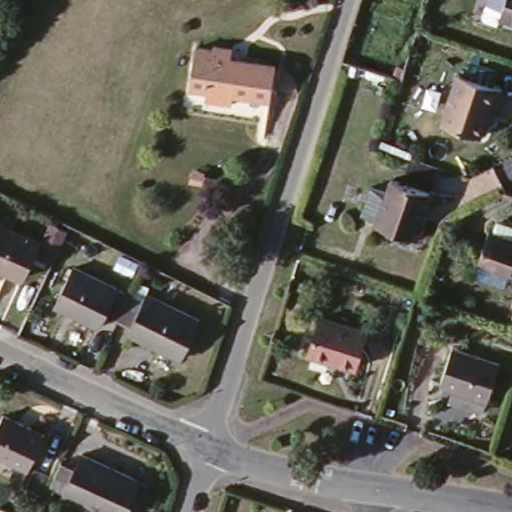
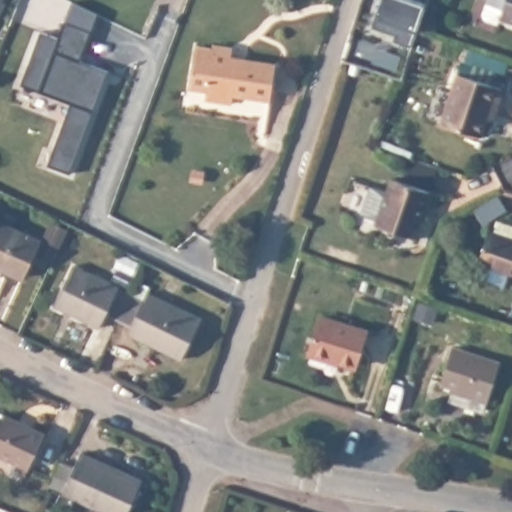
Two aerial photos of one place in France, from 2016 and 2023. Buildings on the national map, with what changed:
unchanged [(503,14),(480,4),(481,0),(512,0),(512,23),(500,19),(503,14)]
new [(90,31),(80,62),(107,72),(69,175),(47,166),(69,104),(21,85),(40,32),(58,38),(64,21),(90,31)]
unchanged [(204,99),(205,90),(189,87),(196,47),(212,50),(213,46),(230,49),(229,57),(273,65),(268,99),(231,94),(231,103),(204,99)]
unchanged [(357,77),(348,75),(351,65),(359,68),(357,77)]
unchanged [(441,122),(457,76),(502,90),(492,121),(487,119),(481,136),(441,122)]
unchanged [(380,224),(382,221),(362,215),(372,186),(391,192),(395,181),(432,194),(423,222),(427,222),(422,239),(380,224)]
new [(51,222),(67,230),(52,262),(36,254),(51,222)]
unchanged [(482,268),(493,239),(496,240),(500,227),(512,231),(512,278),(482,268)]
unchanged [(0,228),(39,245),(20,283),(0,273),(0,228)]
unchanged [(117,323),(104,316),(97,331),(53,310),(73,272),(117,292),(115,296),(128,302),(117,323)]
unchanged [(128,302),(141,307),(146,298),(199,325),(180,363),(127,337),(131,328),(117,323),(128,302)]
unchanged [(311,356),(323,319),(367,334),(357,370),(311,356)]
unchanged [(438,396),(451,359),(500,376),(487,413),(438,396)]
unchanged [(0,422),(3,416),(42,435),(27,467),(0,454),(0,422)]
unchanged [(66,467),(79,472),(86,459),(144,487),(132,512),(99,512),(67,497),(66,502),(53,497),(66,467)]

